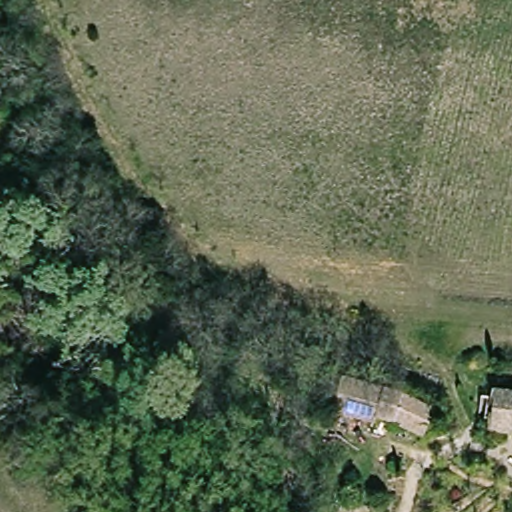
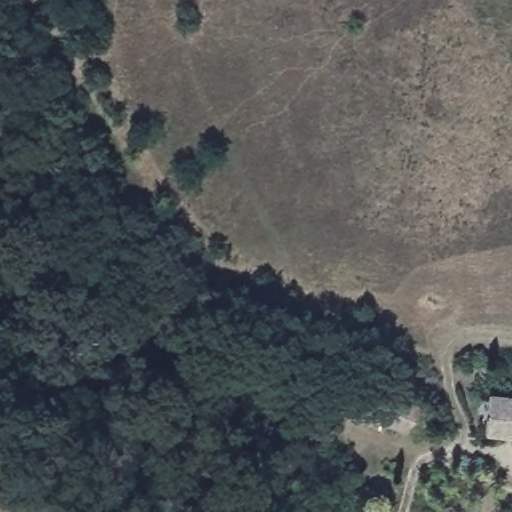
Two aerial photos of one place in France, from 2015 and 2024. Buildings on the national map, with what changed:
unchanged [(339,385),(395,397),(431,413),(421,441),(388,426),(371,422),(368,431),(331,423),(339,385)]
unchanged [(512,399),(512,433),(491,432),(492,397),(512,399)]

